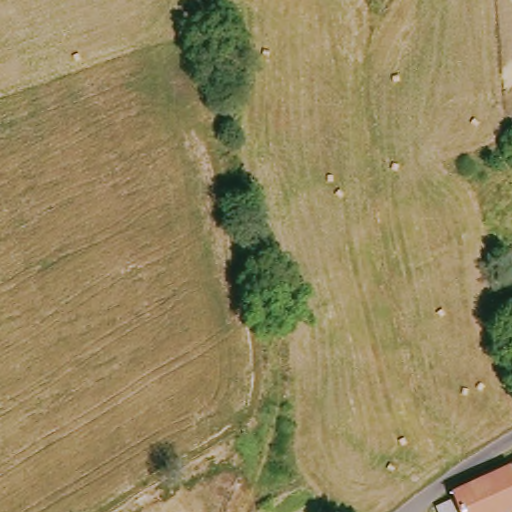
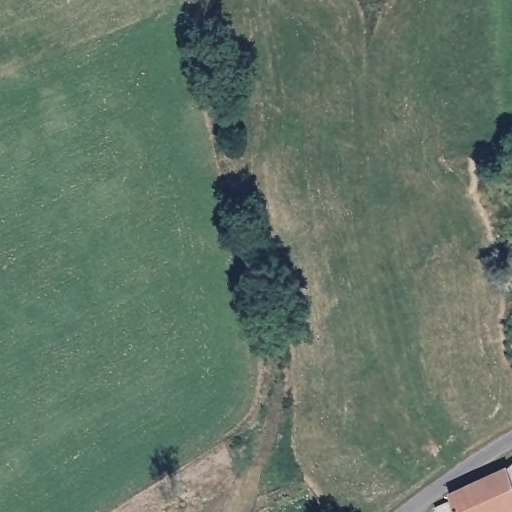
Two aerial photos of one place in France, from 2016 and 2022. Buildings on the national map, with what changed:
unchanged [(507,472),(512,465),(512,512),(451,512),(507,472)]

